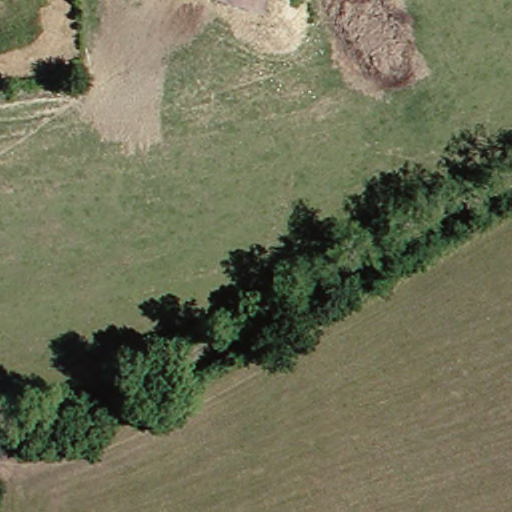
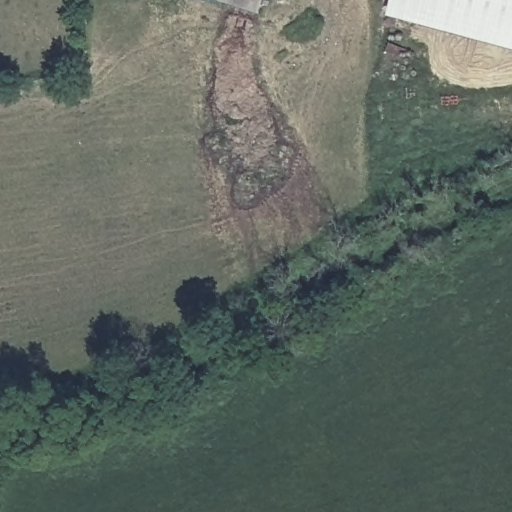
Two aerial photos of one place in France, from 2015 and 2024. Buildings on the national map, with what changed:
unchanged [(264,9),(231,0),(266,0),(264,9)]
new [(389,15),(393,0),(512,0),(512,45),(389,15)]

